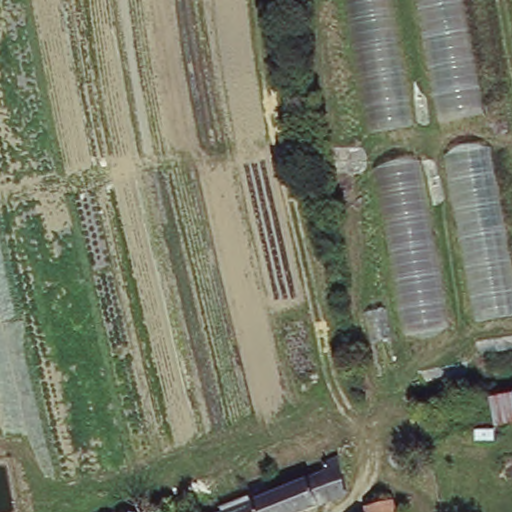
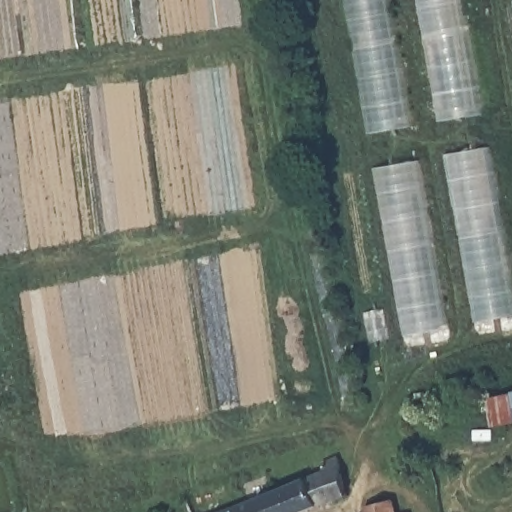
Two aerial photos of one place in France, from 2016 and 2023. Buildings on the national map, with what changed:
unchanged [(390,0),(413,134),(368,142),(344,0),(390,0)]
unchanged [(462,0),(480,114),(443,121),(421,0),(462,0)]
unchanged [(442,144),(487,136),(512,273),(512,324),(477,329),(442,144)]
unchanged [(374,164),(419,156),(449,335),(405,343),(374,164)]
unchanged [(512,395),(512,423),(494,425),(494,397),(512,395)]
unchanged [(347,491),(297,512),(214,512),(232,505),(323,471),(322,464),(337,457),(347,491)]
unchanged [(393,495),(398,512),(370,512),(368,503),(387,497),(393,495)]

